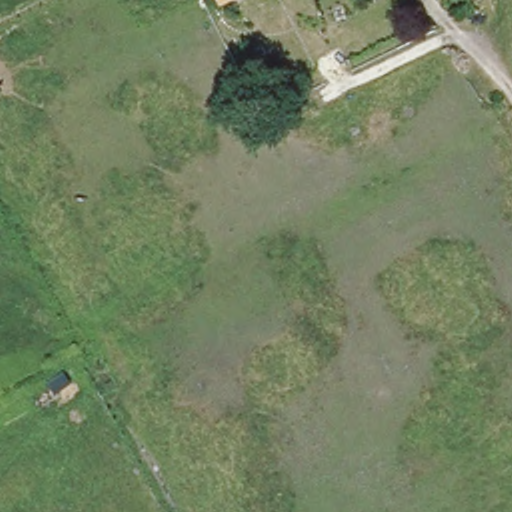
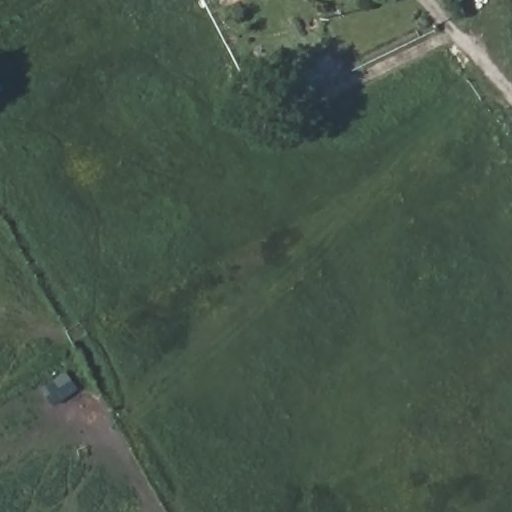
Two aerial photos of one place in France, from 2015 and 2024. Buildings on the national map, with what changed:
unchanged [(224,0),(233,0),(225,4),(224,0)]

